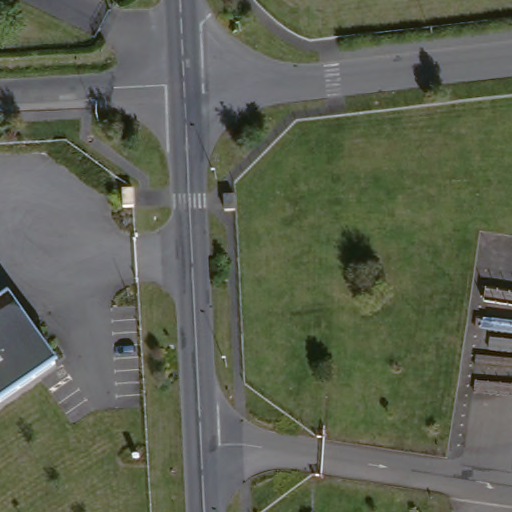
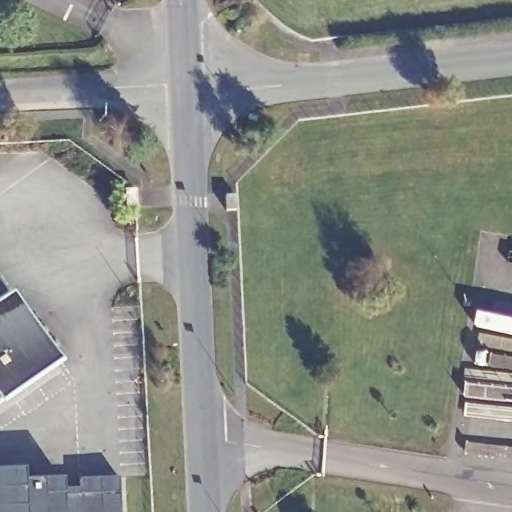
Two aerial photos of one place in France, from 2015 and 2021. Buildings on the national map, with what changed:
unchanged [(137,206),(127,207),(126,189),(136,189),(137,206)]
unchanged [(0,302),(11,294),(26,315),(56,358),(0,398),(0,302)]
new [(24,482),(62,480),(64,495),(81,495),(80,480),(119,477),(121,512),(0,512),(0,472),(24,471),(24,482)]

